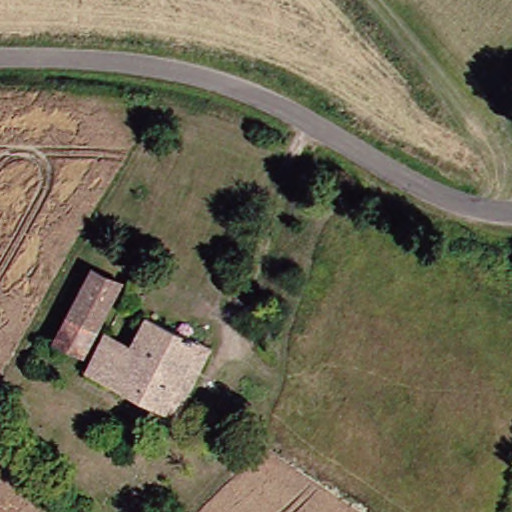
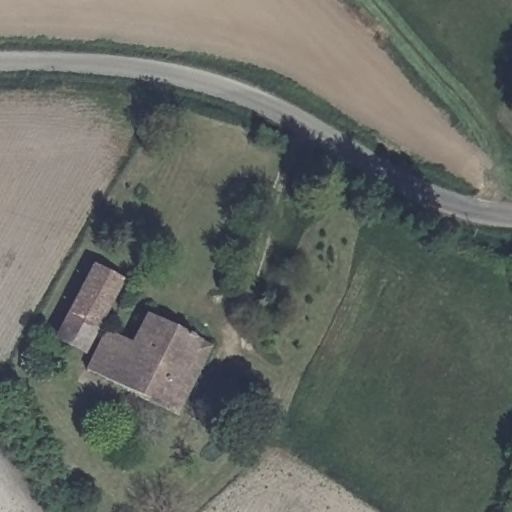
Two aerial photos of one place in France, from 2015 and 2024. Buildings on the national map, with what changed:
unchanged [(113,280),(73,354),(43,337),(82,265),(113,280)]
unchanged [(190,339),(155,411),(74,371),(94,330),(121,344),(136,313),(190,339)]

